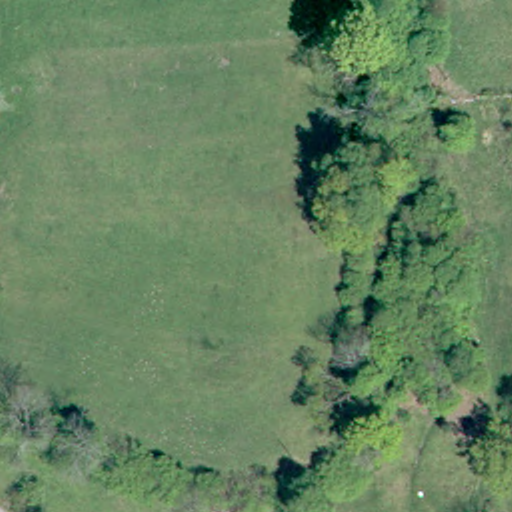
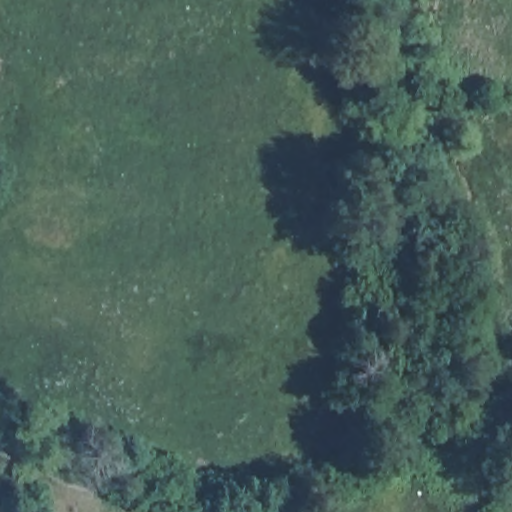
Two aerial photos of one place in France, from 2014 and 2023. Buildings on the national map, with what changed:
unchanged [(237,510),(237,512),(213,512),(213,509),(237,510)]

